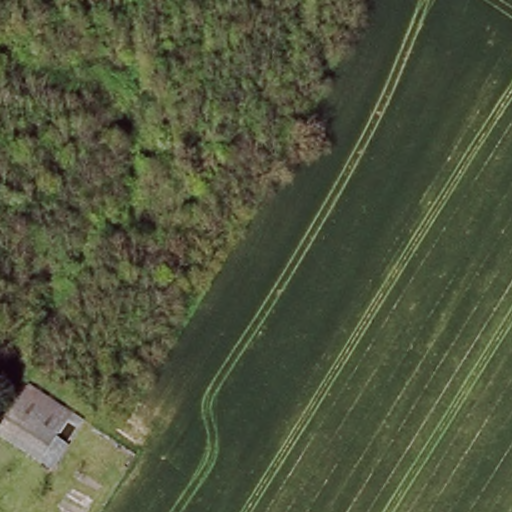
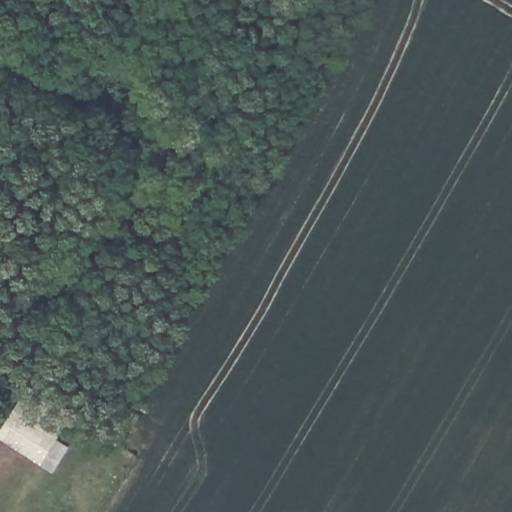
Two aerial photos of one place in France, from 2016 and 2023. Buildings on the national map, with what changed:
unchanged [(30,381),(74,410),(45,456),(0,428),(30,381)]

